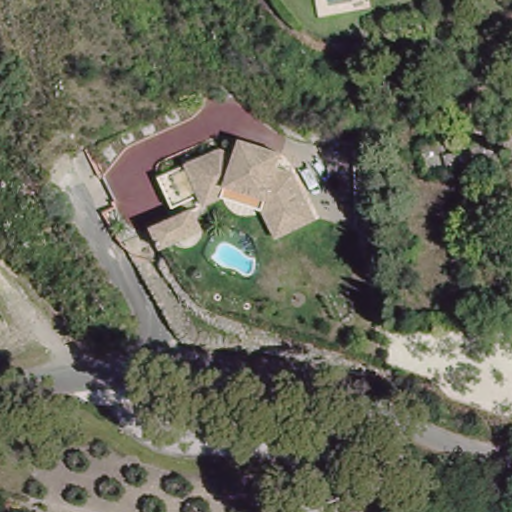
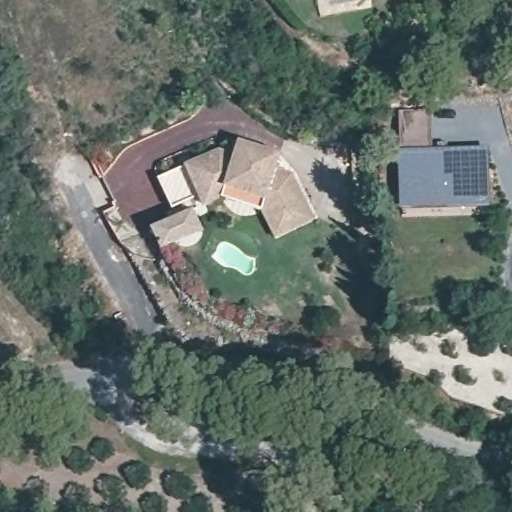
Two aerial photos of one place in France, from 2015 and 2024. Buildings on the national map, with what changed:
new [(427,109),(429,150),(483,149),(484,202),(445,204),(445,196),(397,197),(395,109),(427,109)]
unchanged [(181,167),(182,162),(214,151),(229,153),(235,139),(272,155),(270,168),(290,177),(308,219),(272,239),(255,207),(221,194),(202,206),(198,202),(170,214),(156,179),(181,167)]
unchanged [(195,209),(205,230),(167,247),(155,226),(195,209)]
demolished [(210,421),(215,390),(254,395),(250,427),(210,421)]
demolished [(396,439),(381,461),(365,449),(380,427),(396,439)]

